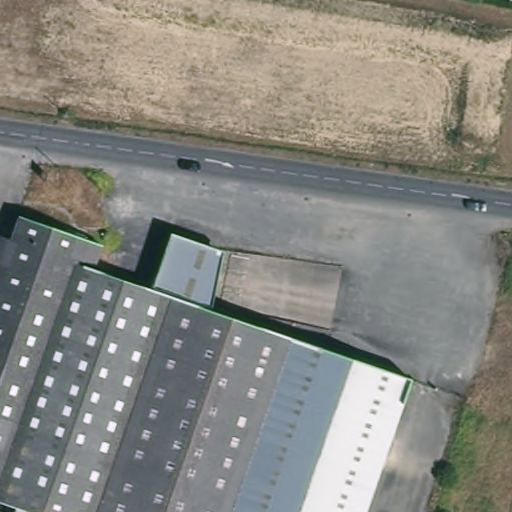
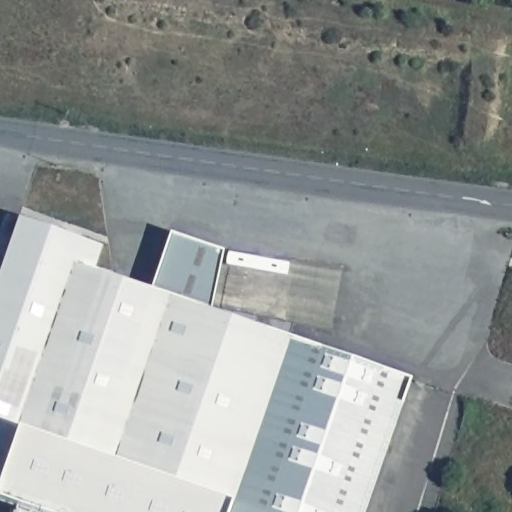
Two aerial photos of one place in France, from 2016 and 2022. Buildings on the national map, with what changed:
unchanged [(71,255),(64,279),(127,298),(168,309),(284,343),(402,379),(363,512),(0,512),(0,272),(10,237),(71,255)]
unchanged [(143,240),(186,252),(168,309),(127,298),(143,240)]

